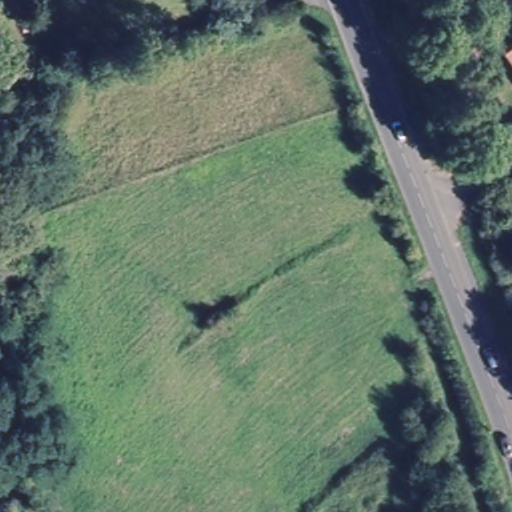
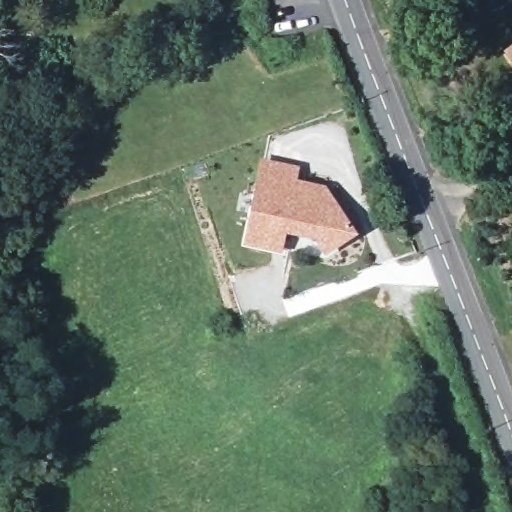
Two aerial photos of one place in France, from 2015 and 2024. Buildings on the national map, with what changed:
unchanged [(503,58),(512,52),(512,70),(503,58)]
new [(298,180),(327,186),(356,235),(324,255),(316,241),(285,236),(281,254),(242,247),(260,159),(300,167),(298,180)]

